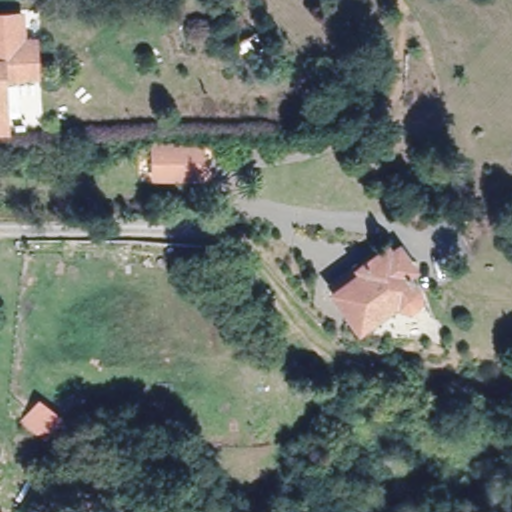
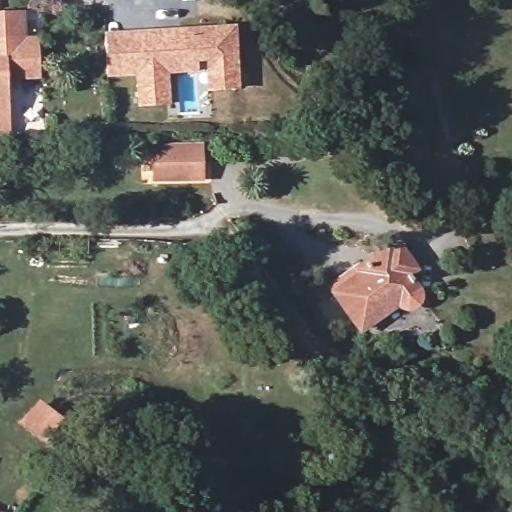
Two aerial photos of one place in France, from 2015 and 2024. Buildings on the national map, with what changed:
unchanged [(17,40),(29,39),(31,77),(11,78),(11,82),(0,83),(0,15),(16,15),(17,40)]
new [(236,24),(239,89),(205,91),(204,72),(169,74),(169,106),(135,107),(134,77),(104,77),(104,31),(236,24)]
unchanged [(372,74),(376,49),(391,51),(387,76),(372,74)]
unchanged [(0,134),(0,115),(1,134),(0,134)]
unchanged [(155,147),(200,147),(200,179),(155,180),(155,147)]
unchanged [(408,274),(414,282),(412,283),(417,291),(418,292),(418,293),(419,296),(419,297),(418,300),(417,302),(417,303),(416,305),(415,306),(412,307),(411,308),(408,308),(406,308),(404,308),(401,307),(400,306),(399,305),(397,303),(360,331),(328,286),(357,265),(360,268),(387,249),(395,244),(404,256),(414,270),(408,274)]
unchanged [(43,438),(25,425),(41,405),(59,418),(43,438)]

